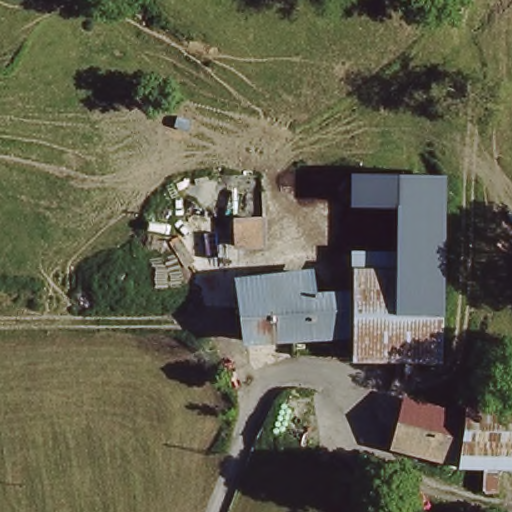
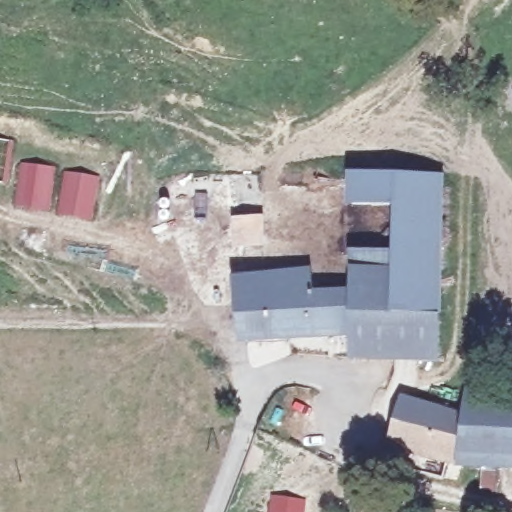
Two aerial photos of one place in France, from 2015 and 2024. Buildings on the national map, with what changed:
new [(5,184),(0,183),(0,139),(10,141),(5,184)]
new [(20,163),(55,166),(50,211),(15,208),(20,163)]
unchanged [(417,293),(416,259),(403,259),(406,217),(346,209),(350,171),(446,182),(444,293),(417,293)]
new [(65,172),(100,176),(93,220),(59,215),(65,172)]
unchanged [(242,216),(271,220),(269,246),(239,242),(242,216)]
unchanged [(416,259),(417,293),(444,293),(444,312),(442,370),(346,367),(346,352),(237,341),(241,276),(311,283),(310,303),(356,308),(359,263),(403,266),(403,259),(416,259)]
unchanged [(403,404),(472,421),(475,400),(512,401),(512,470),(508,470),(506,501),(491,499),(493,468),(466,465),(465,475),(391,448),(403,404)]
new [(305,512),(270,512),(272,497),(306,500),(305,512)]
new [(392,503),(393,512),(362,512),(362,509),(392,503)]

